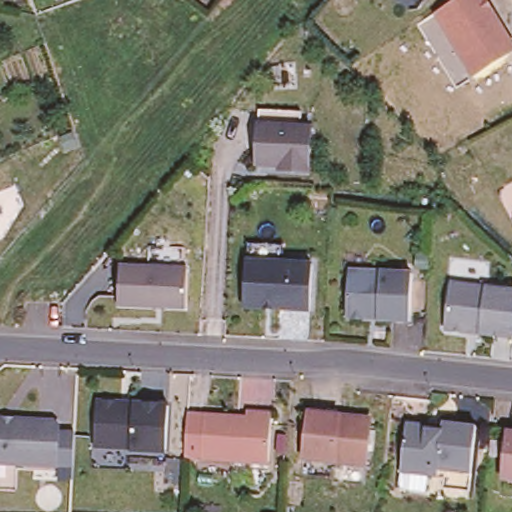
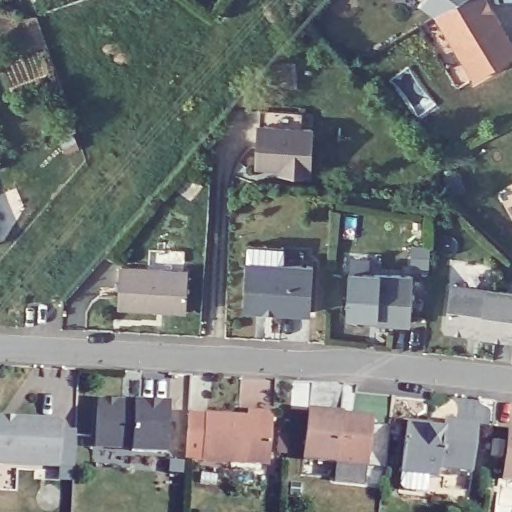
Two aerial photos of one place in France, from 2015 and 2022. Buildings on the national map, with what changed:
unchanged [(508,58),(474,80),(434,15),(459,0),(483,0),(499,25),(512,45),(512,55),(508,58)]
unchanged [(284,171),(261,170),(261,132),(263,132),(263,116),(304,118),(304,134),(316,134),(314,179),(291,178),(284,177),(284,171)]
unchanged [(244,247),(280,248),(279,266),(309,267),(307,315),(241,311),(243,265),(244,265),(244,247)]
unchanged [(187,270),(186,310),(118,307),(118,267),(187,270)]
unchanged [(410,276),(408,325),(374,323),(374,317),(366,317),(361,322),(348,322),(344,316),(345,274),(410,276)]
unchanged [(512,294),(512,334),(511,341),(477,337),(478,331),(467,330),(461,335),(448,333),(443,327),(448,286),(512,294)]
unchanged [(164,452),(131,451),(131,447),(94,445),(97,403),(120,404),(120,410),(133,410),(133,405),(168,406),(164,452)]
unchanged [(65,460),(50,459),(0,457),(0,417),(10,417),(15,413),(46,414),(53,419),(52,425),(66,425),(65,448),(65,460)]
unchanged [(213,419),(256,420),(256,413),(281,414),(279,463),(212,462),(193,462),(193,455),(195,418),(213,419)]
unchanged [(338,416),(338,422),(348,423),(351,419),(364,420),(369,425),(364,466),(301,461),(306,414),(338,416)]
unchanged [(430,423),(430,428),(444,430),(445,420),(479,423),(474,472),(440,468),(440,475),(403,471),(409,421),(430,423)]
unchanged [(504,478),(509,430),(512,430),(512,479),(504,478)]

